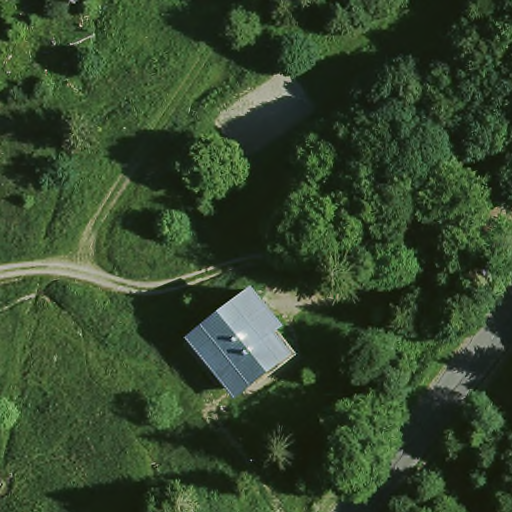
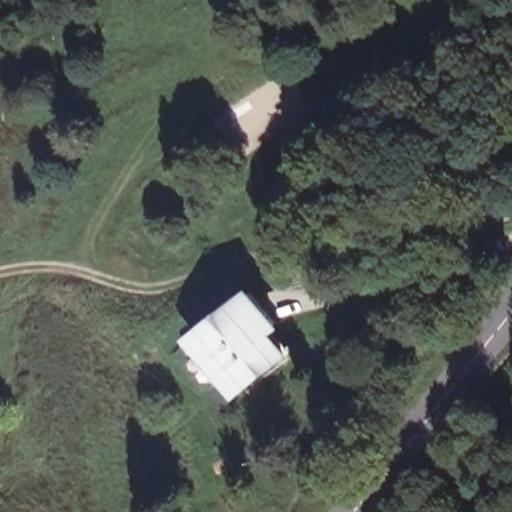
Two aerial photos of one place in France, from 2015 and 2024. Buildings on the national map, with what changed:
unchanged [(295,350),(235,397),(193,333),(253,286),(295,350)]

